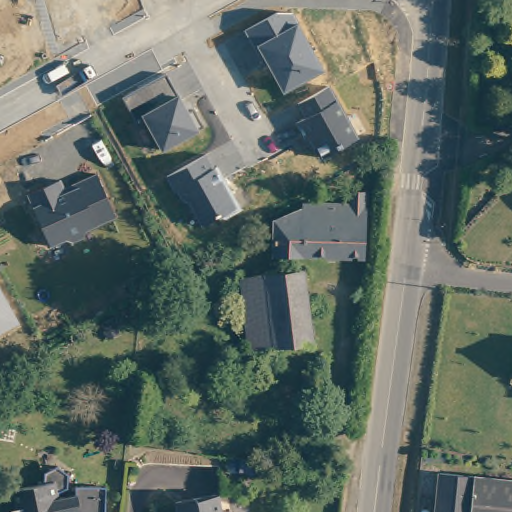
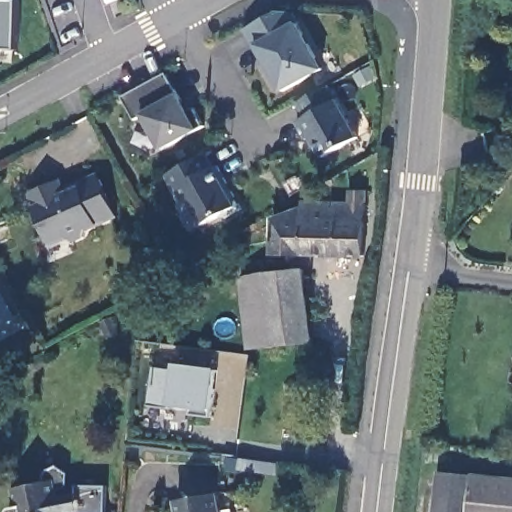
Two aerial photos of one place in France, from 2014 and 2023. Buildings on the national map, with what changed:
new [(17,51),(0,51),(0,1),(19,1),(17,51)]
unchanged [(325,70),(284,94),(267,60),(262,63),(247,29),(278,13),(295,13),(300,23),(325,70)]
unchanged [(185,103),(191,100),(205,127),(199,131),(162,151),(144,118),(138,121),(127,97),(169,75),(180,95),(185,103)]
unchanged [(323,159),(312,139),(307,142),(297,123),(307,118),(299,104),(331,88),(358,138),(323,159)]
unchanged [(224,221),(217,219),(205,225),(190,200),(187,202),(180,189),(176,190),(169,177),(209,154),(242,210),(224,221)]
unchanged [(89,230),(86,238),(76,243),(67,239),(52,245),(28,195),(60,179),(67,191),(79,187),(77,184),(98,175),(117,218),(89,230)]
unchanged [(359,257),(269,254),(270,218),(298,209),(299,200),(345,200),(346,189),(362,189),(359,257)]
unchanged [(313,342),(250,349),(240,277),(264,272),(304,269),(313,342)]
unchanged [(0,335),(0,288),(20,324),(0,335)]
new [(212,412),(171,407),(149,406),(154,367),(176,369),(177,364),(217,370),(212,412)]
unchanged [(235,461),(272,466),(271,476),(234,471),(235,461)]
unchanged [(6,509),(8,504),(17,504),(17,483),(42,482),(42,470),(56,466),(67,474),(66,492),(59,504),(61,507),(76,508),(75,499),(105,500),(104,512),(6,512),(6,509)]
unchanged [(512,480),(512,512),(433,512),(438,471),(512,480)]
unchanged [(207,494),(210,511),(221,508),(221,512),(168,512),(166,502),(207,494)]

